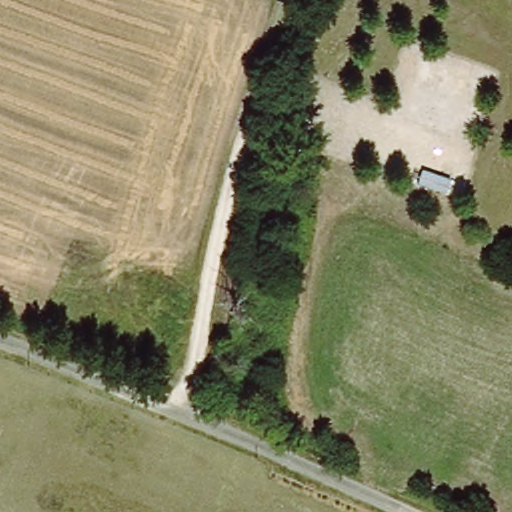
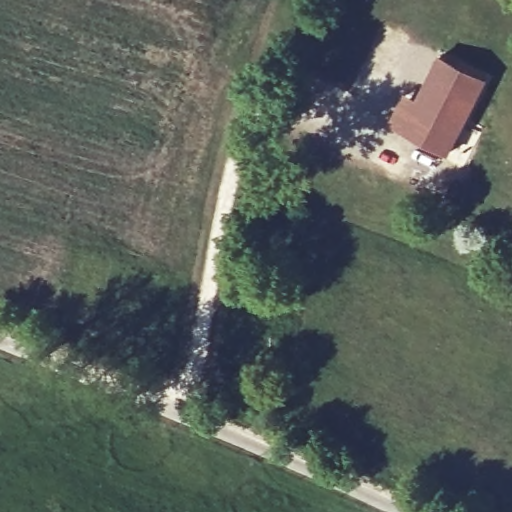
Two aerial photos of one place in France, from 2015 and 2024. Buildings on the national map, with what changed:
new [(444,53),(489,75),(451,151),(406,129),(444,53)]

